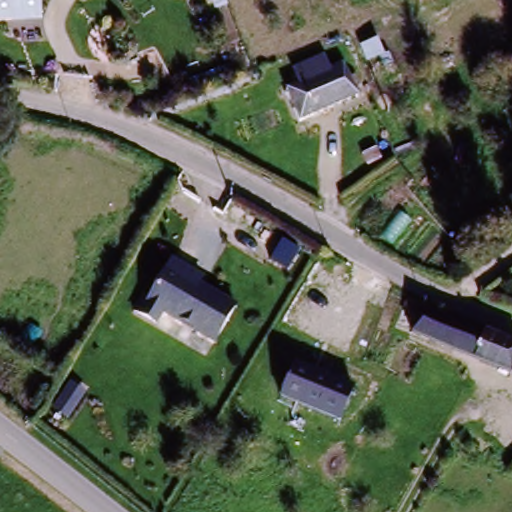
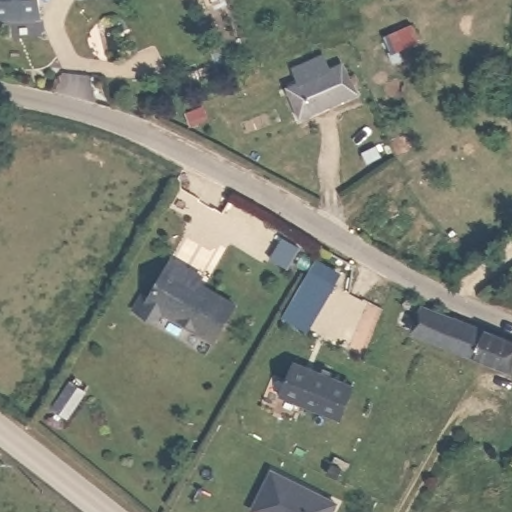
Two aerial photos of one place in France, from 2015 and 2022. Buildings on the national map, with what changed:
unchanged [(44,17),(0,20),(0,0),(43,0),(44,17)]
unchanged [(283,100),(296,95),(290,80),(320,67),(327,81),(338,77),(347,97),(291,120),(283,100)]
unchanged [(149,286),(154,290),(186,258),(211,280),(202,290),(220,306),(224,302),(239,314),(211,345),(165,307),(157,316),(137,300),(149,286)]
new [(318,258),(345,273),(308,333),(282,316),(318,258)]
unchanged [(422,334),(429,308),(512,339),(512,356),(507,367),(422,334)]
unchanged [(296,360),(355,385),(340,421),(281,395),(296,360)]
new [(336,512),(251,512),(272,470),(340,504),(336,512)]

